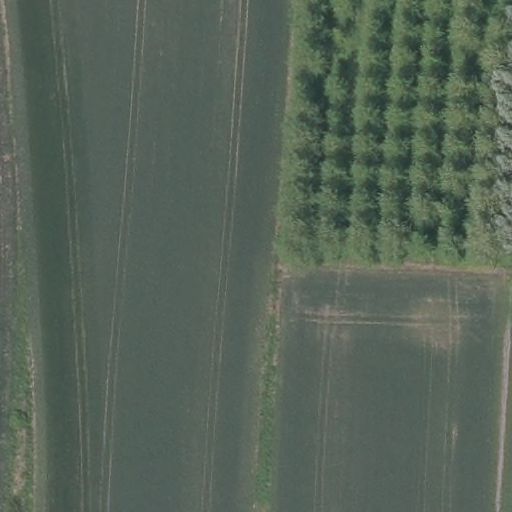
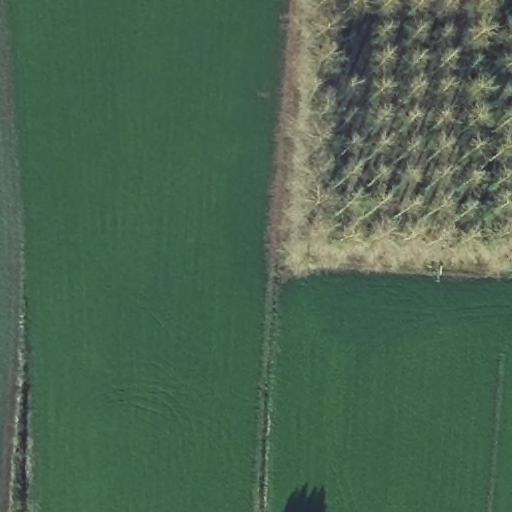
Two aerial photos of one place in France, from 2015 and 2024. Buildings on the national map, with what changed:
[]

